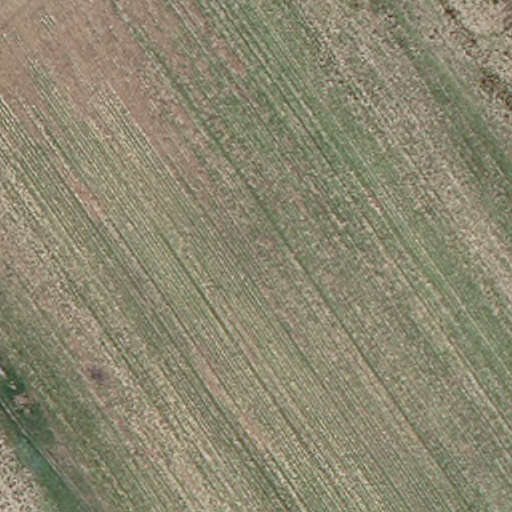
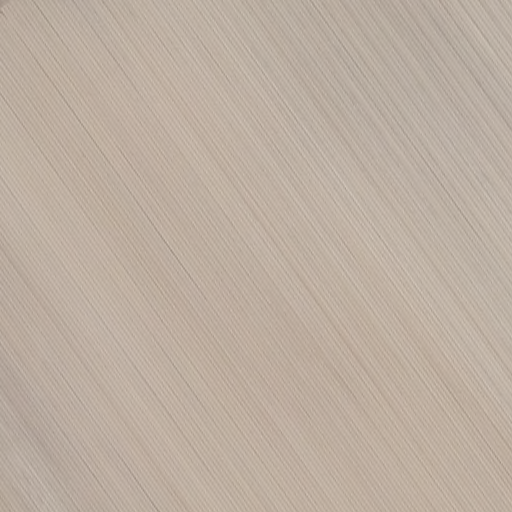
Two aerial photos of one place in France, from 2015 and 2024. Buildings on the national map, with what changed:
[]

